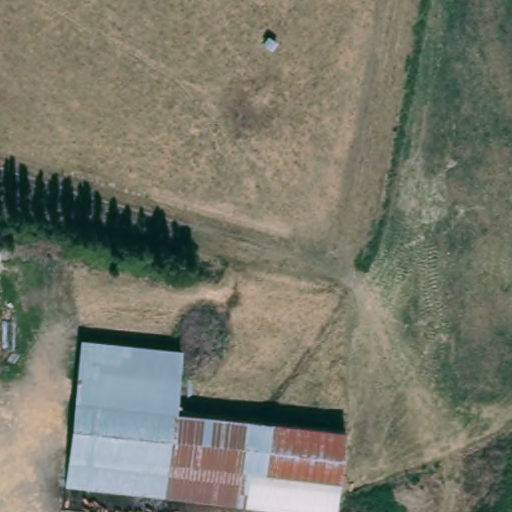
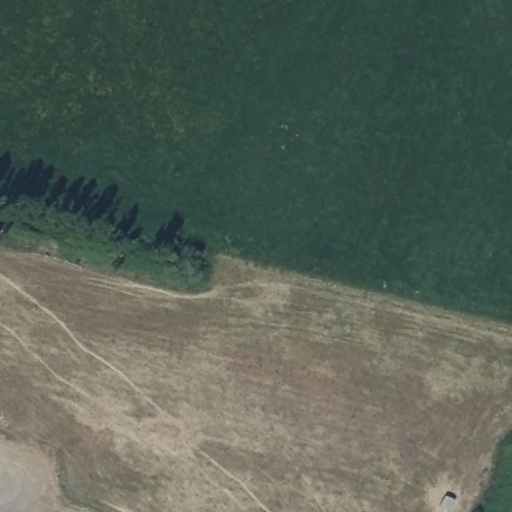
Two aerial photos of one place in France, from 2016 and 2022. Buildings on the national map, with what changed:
demolished [(340,512),(300,512),(69,486),(85,339),(186,348),(181,411),(349,429),(340,512)]

